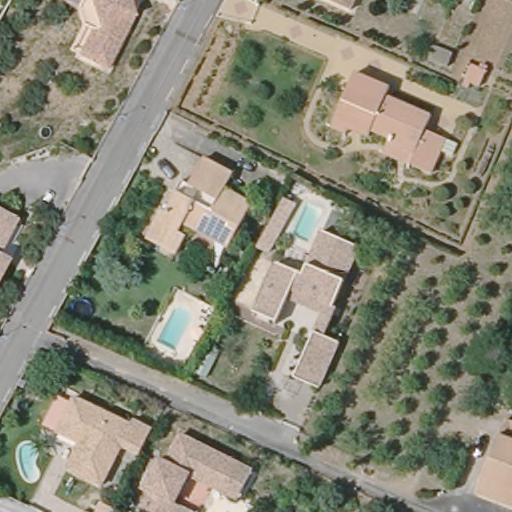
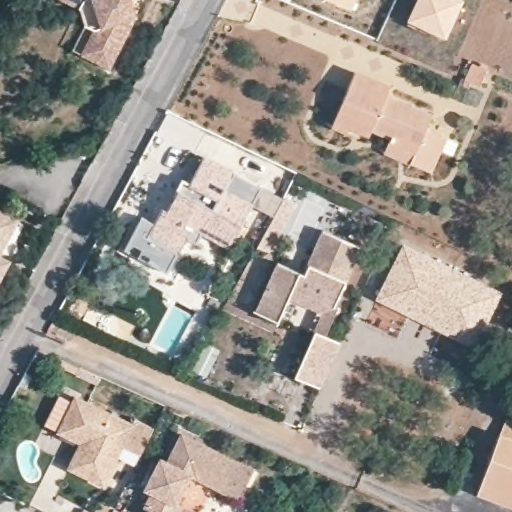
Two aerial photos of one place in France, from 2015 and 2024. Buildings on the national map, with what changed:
unchanged [(132,22),(106,68),(80,57),(68,48),(81,27),(75,10),(54,0),(126,0),(132,22)]
unchanged [(345,9),(324,0),(350,0),(345,9)]
new [(462,0),(446,34),(410,16),(417,0),(462,0)]
demolished [(452,52),(447,66),(429,59),(434,45),(452,52)]
unchanged [(468,88),(463,86),(473,63),(486,69),(480,86),(471,82),(468,88)]
unchanged [(451,149),(440,144),(430,167),(385,147),(390,134),(370,125),(368,131),(348,122),(346,127),(331,121),(355,67),(390,82),(386,90),(431,109),(425,124),(445,132),(457,137),(451,149)]
unchanged [(215,239),(191,226),(185,222),(180,231),(186,235),(176,253),(147,237),(162,209),(166,211),(177,192),(175,191),(182,179),(190,184),(203,159),(203,158),(232,173),(225,188),(252,203),(232,240),(228,247),(215,239)]
new [(283,196),(297,204),(270,254),(256,247),(283,196)]
unchanged [(20,216),(2,250),(13,257),(0,281),(0,205),(20,216)]
unchanged [(277,254),(303,265),(321,221),(364,242),(337,302),(295,286),(281,314),(256,303),(277,254)]
new [(402,242),(501,292),(475,348),(401,314),(374,299),(402,242)]
unchanged [(288,381),(293,367),(311,325),(341,339),(322,380),(317,394),(288,381)]
unchanged [(75,388),(133,418),(135,413),(156,424),(142,451),(123,443),(103,480),(66,462),(80,436),(55,423),(75,388)]
unchanged [(512,408),(512,426),(503,421),(510,406),(512,408)]
unchanged [(492,444),(500,429),(505,431),(512,434),(512,512),(496,512),(471,502),(492,444)]
unchanged [(190,475),(175,502),(180,505),(177,512),(150,512),(143,508),(151,492),(145,489),(160,458),(167,462),(181,434),(253,470),(238,499),(190,475)]
unchanged [(117,512),(97,512),(100,504),(117,512)]
unchanged [(84,512),(81,512),(82,511),(84,512)]

